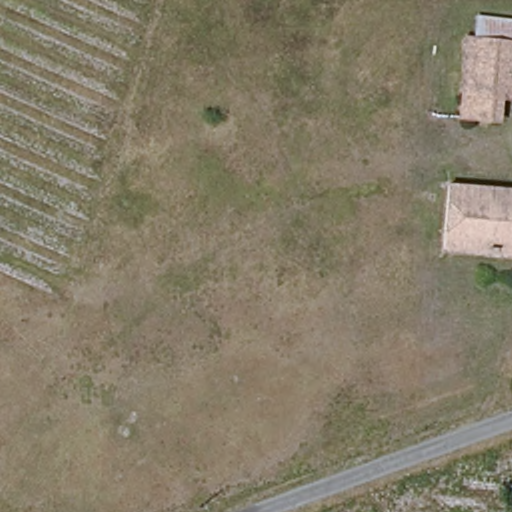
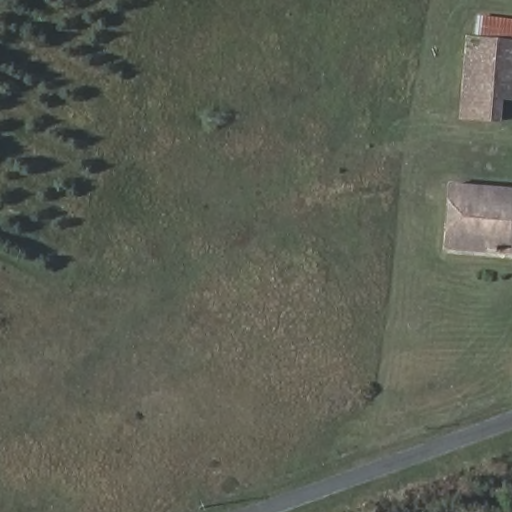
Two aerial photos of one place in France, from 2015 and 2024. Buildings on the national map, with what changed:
unchanged [(505,129),(461,125),(470,20),(512,23),(512,104),(507,103),(505,129)]
unchanged [(443,246),(445,194),(512,196),(512,255),(447,254),(443,246)]

